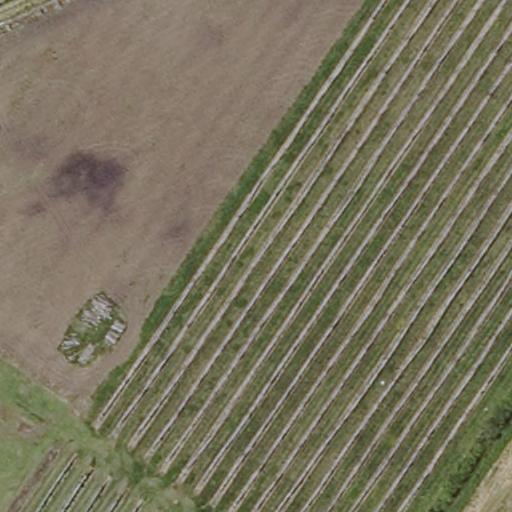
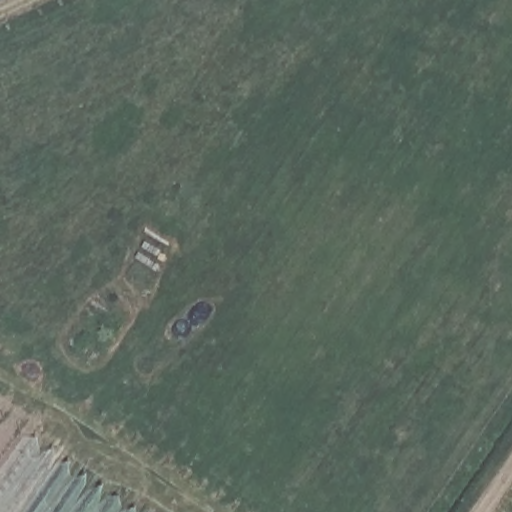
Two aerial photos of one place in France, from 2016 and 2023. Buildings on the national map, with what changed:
unchanged [(0,1),(0,0),(2,0),(0,1)]

